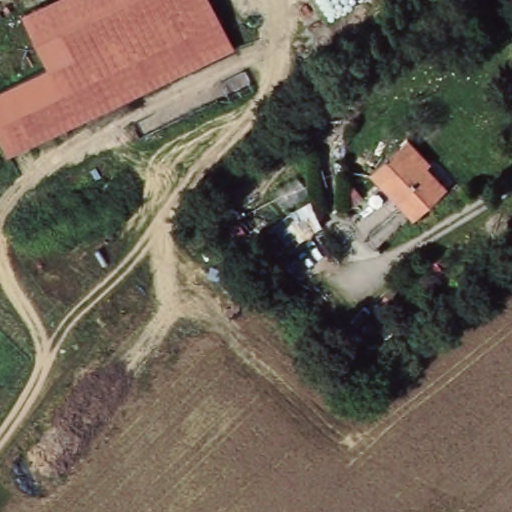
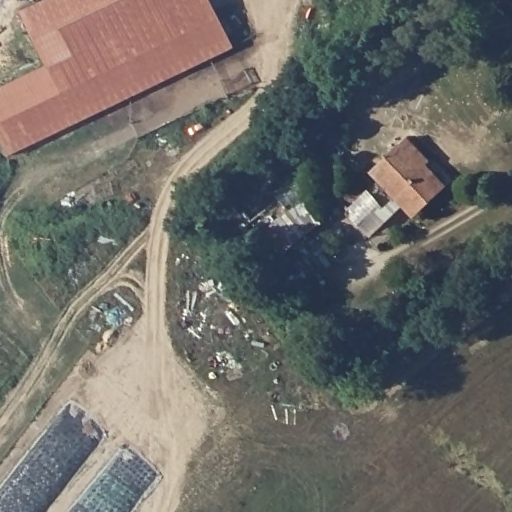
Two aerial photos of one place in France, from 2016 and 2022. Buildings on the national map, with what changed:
unchanged [(0,136),(0,87),(48,65),(23,10),(43,0),(214,0),(237,46),(9,153),(0,136)]
unchanged [(419,212),(375,167),(405,139),(412,132),(435,156),(431,160),(452,181),(419,212)]

